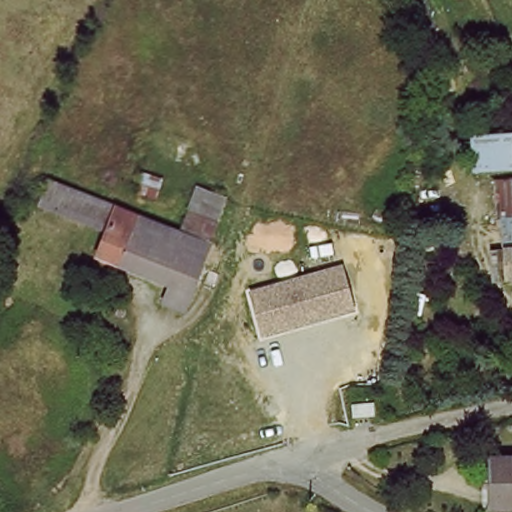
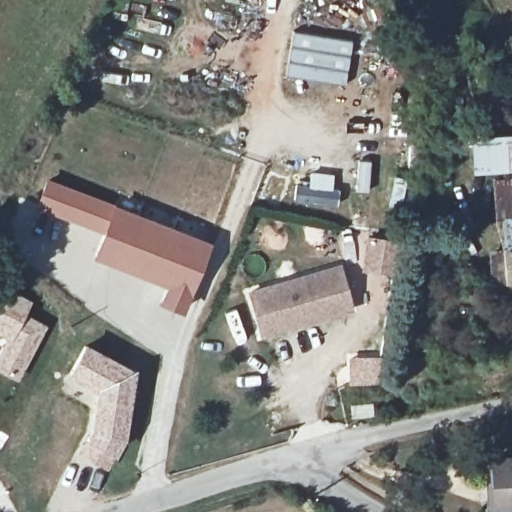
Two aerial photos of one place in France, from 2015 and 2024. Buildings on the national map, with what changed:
new [(292,31),(352,40),(345,84),(285,75),(292,31)]
unchanged [(512,132),(512,167),(475,169),(475,134),(512,132)]
unchanged [(102,261),(95,257),(104,232),(42,204),(50,179),(123,212),(102,261)]
demolished [(200,186),(232,200),(212,247),(180,232),(200,186)]
unchanged [(123,212),(125,207),(180,232),(212,247),(184,314),(163,305),(168,286),(102,261),(123,212)]
unchanged [(506,272),(505,241),(498,240),(497,217),(512,216),(512,272),(506,272)]
unchanged [(346,269),(356,317),(265,340),(250,293),(346,269)]
new [(26,313),(10,339),(7,338),(6,340),(0,337),(0,284),(32,300),(26,313)]
new [(7,338),(10,339),(26,313),(47,325),(18,382),(0,372),(0,351),(6,340),(7,338)]
new [(85,343),(137,369),(125,438),(108,469),(77,454),(88,429),(95,389),(67,375),(85,343)]
unchanged [(374,409),(375,421),(354,423),(353,411),(374,409)]
unchanged [(512,460),(512,511),(493,512),(491,460),(512,460)]

